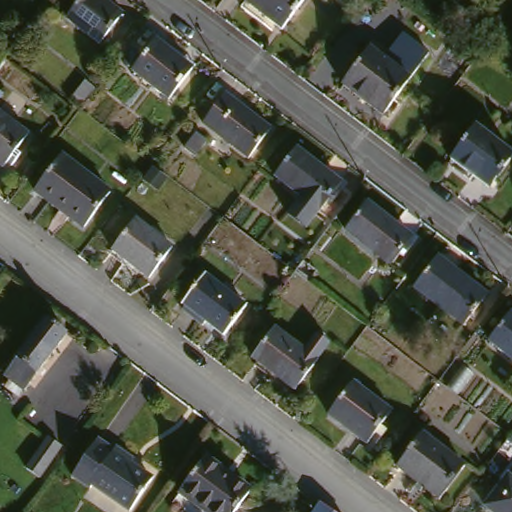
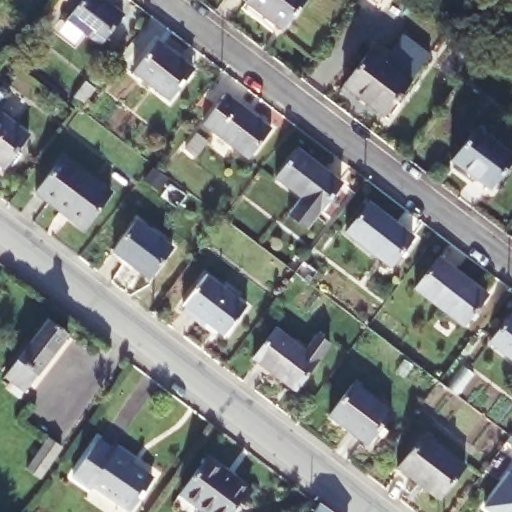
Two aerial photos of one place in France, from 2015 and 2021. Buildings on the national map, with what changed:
unchanged [(94,49),(61,23),(79,0),(91,0),(117,20),(94,49)]
unchanged [(275,22),(271,27),(241,4),(243,0),(303,0),(281,27),(275,22)]
unchanged [(368,55),(380,65),(399,40),(426,61),(381,120),(341,90),(368,55)]
unchanged [(188,76),(164,106),(128,78),(151,48),(188,76)]
unchanged [(221,97),(265,131),(243,160),(198,126),(221,97)]
unchanged [(2,171),(0,169),(0,116),(28,138),(2,171)]
unchanged [(508,157),(481,190),(445,161),(471,127),(508,157)]
unchanged [(197,155),(184,172),(172,162),(186,146),(197,155)]
unchanged [(339,187),(304,234),(286,220),(301,201),(278,184),(298,157),(339,187)]
unchanged [(105,197),(78,232),(31,197),(57,162),(105,197)]
unchanged [(154,187),(146,198),(131,187),(140,177),(154,187)]
unchanged [(365,209),(409,242),(388,270),(344,236),(365,209)]
unchanged [(134,226),(169,252),(147,282),(111,255),(134,226)]
unchanged [(478,300),(458,327),(411,291),(431,263),(478,300)]
unchanged [(244,309),(221,338),(180,307),(203,277),(244,309)]
unchanged [(512,321),(512,365),(488,346),(509,320),(512,321)]
unchanged [(0,389),(3,385),(0,382),(0,378),(40,325),(62,341),(18,396),(8,388),(5,393),(0,390),(0,389)]
unchanged [(271,337),(299,358),(313,342),(324,350),(289,397),(248,366),(271,337)]
unchanged [(383,417),(358,450),(321,422),(346,390),(383,417)]
unchanged [(458,469),(433,502),(396,475),(421,442),(458,469)]
unchanged [(508,462),(491,450),(498,442),(512,453),(512,458),(508,462)]
unchanged [(98,445),(113,457),(117,452),(134,466),(131,470),(153,487),(133,512),(123,512),(93,489),(88,495),(70,481),(98,445)]
unchanged [(48,456),(24,487),(10,477),(33,446),(48,456)]
unchanged [(206,457),(251,491),(234,512),(185,512),(171,502),(206,457)]
unchanged [(512,490),(512,512),(481,512),(503,483),(512,490)]

